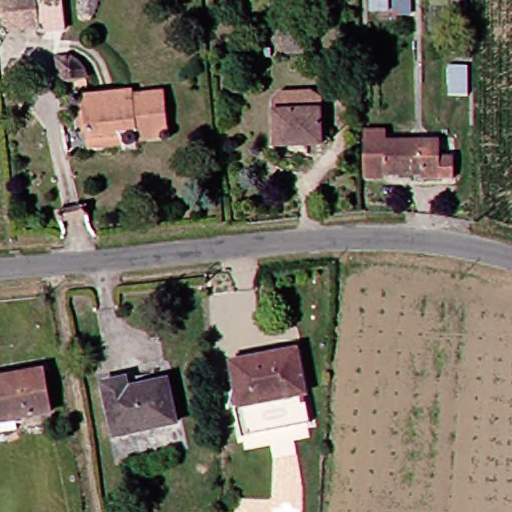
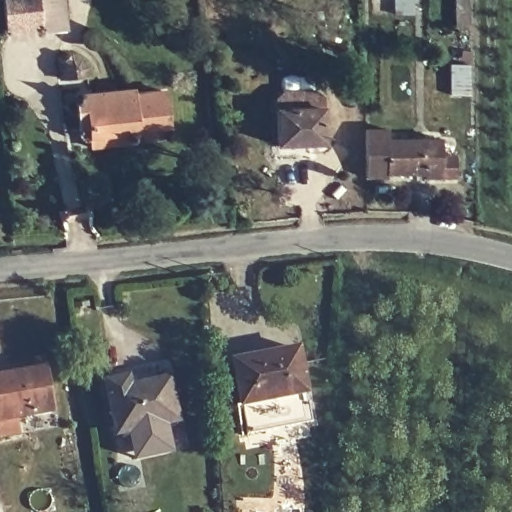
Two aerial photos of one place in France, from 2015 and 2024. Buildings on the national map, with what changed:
unchanged [(37,0),(37,4),(1,8),(0,8),(0,0),(37,0)]
unchanged [(8,44),(7,44),(6,45),(5,45),(4,44),(3,44),(2,43),(2,42),(2,41),(2,40),(3,39),(4,39),(5,39),(1,8),(37,4),(40,35),(41,35),(42,35),(43,36),(44,36),(44,38),(44,39),(44,40),(43,40),(42,41),(41,41),(40,41),(39,41),(38,40),(38,39),(9,43),(8,44)]
unchanged [(307,53),(277,52),(277,30),(308,31),(307,53)]
unchanged [(88,69),(89,73),(90,77),(64,79),(62,57),(68,56),(73,58),(79,60),(83,63),(86,66),(88,69)]
unchanged [(468,95),(450,95),(449,64),(468,65),(468,95)]
unchanged [(174,136),(139,140),(139,143),(96,147),(95,137),(92,139),(91,139),(90,139),(88,139),(87,139),(86,139),(84,137),(84,135),(80,95),(137,90),(137,94),(169,91),(174,136)]
unchanged [(322,142),(277,144),(275,99),(281,93),(313,92),(321,97),(322,142)]
unchanged [(460,183),(428,183),(428,179),(391,179),(391,174),(371,174),(370,134),(392,134),(392,144),(445,144),(445,161),(459,161),(460,183)]
unchanged [(316,413),(251,424),(238,356),(263,351),(263,347),(302,339),(310,383),(316,413)]
unchanged [(242,396),(226,399),(221,372),(237,369),(242,396)]
unchanged [(46,412),(17,417),(19,429),(0,433),(0,380),(39,373),(44,372),(52,411),(46,412)]
unchanged [(178,422),(115,435),(104,383),(128,378),(130,388),(169,379),(178,422)]

